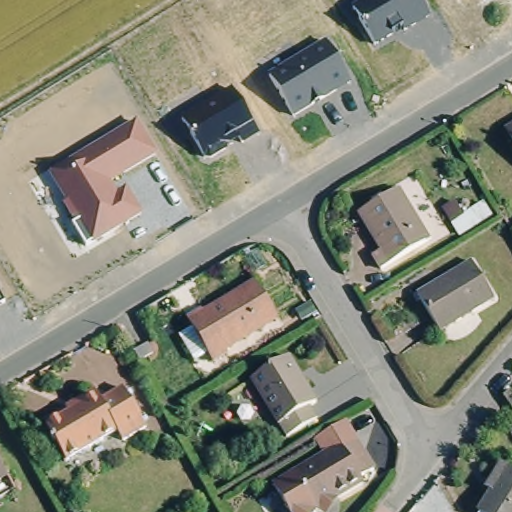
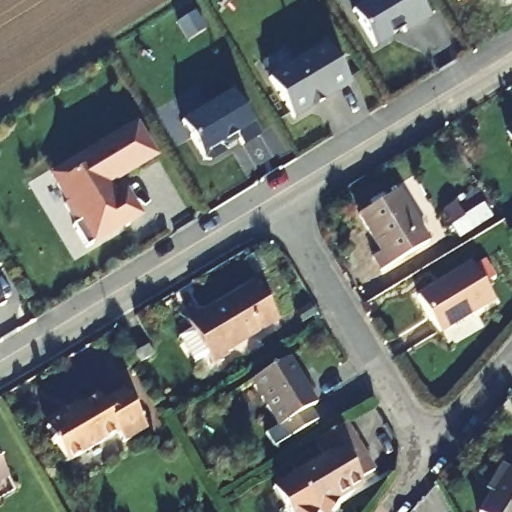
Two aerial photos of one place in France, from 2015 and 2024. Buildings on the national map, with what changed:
unchanged [(374,49),(351,11),(368,0),(419,0),(429,17),(374,49)]
unchanged [(458,0),(465,0),(459,3),(458,0)]
unchanged [(351,85),(292,120),(266,77),(326,42),(351,85)]
unchanged [(211,161),(204,159),(182,119),(233,89),(260,136),(244,146),(240,140),(228,146),(227,152),(211,161)]
unchanged [(66,202),(49,174),(138,121),(158,157),(113,181),(119,194),(128,189),(143,215),(93,244),(85,247),(73,225),(63,205),(66,202)]
unchanged [(512,142),(504,127),(512,122),(512,142)]
unchanged [(430,244),(381,273),(374,258),(382,252),(359,216),(399,192),(430,244)]
unchanged [(473,265),(495,302),(440,335),(419,297),(473,265)]
unchanged [(279,322),(226,353),(228,357),(213,366),(188,322),(203,313),(205,317),(256,286),(279,322)]
unchanged [(4,303),(0,306),(0,296),(4,303)]
unchanged [(148,347),(153,357),(139,364),(135,355),(148,347)]
unchanged [(289,359),(316,406),(310,410),(318,422),(286,441),(252,382),(289,359)]
unchanged [(128,401),(151,441),(127,454),(122,445),(71,475),(50,438),(73,425),(70,420),(100,403),(103,408),(106,413),(128,401)]
unchanged [(334,512),(329,512),(324,508),(321,512),(299,512),(289,477),(341,447),(331,432),(351,420),(379,468),(366,476),(368,480),(341,496),(344,497),(334,512)]
unchanged [(487,492),(480,488),(496,462),(502,467),(512,473),(512,512),(475,512),(487,492)]
unchanged [(8,478),(0,482),(0,464),(8,478)]

